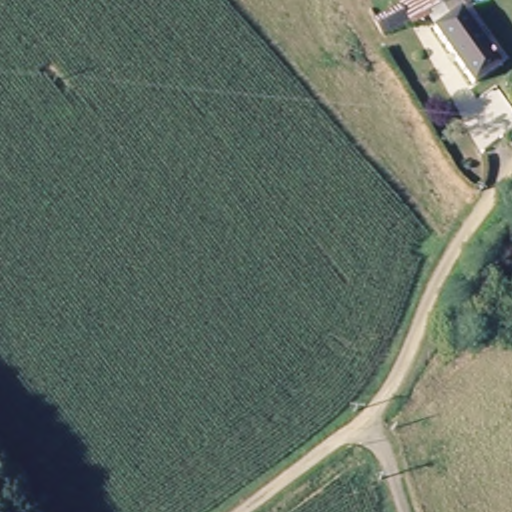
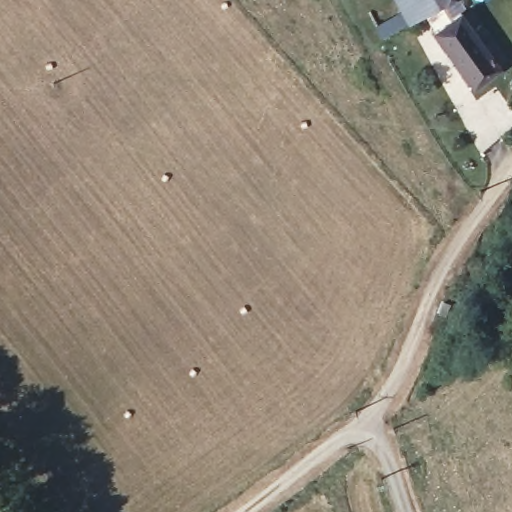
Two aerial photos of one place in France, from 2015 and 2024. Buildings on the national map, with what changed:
unchanged [(405,25),(380,37),(375,0),(392,0),(405,25)]
unchanged [(449,2),(405,25),(392,0),(448,0),(449,2)]
unchanged [(449,2),(448,0),(454,0),(449,2)]
unchanged [(505,64),(474,91),(430,36),(456,13),(505,64)]

